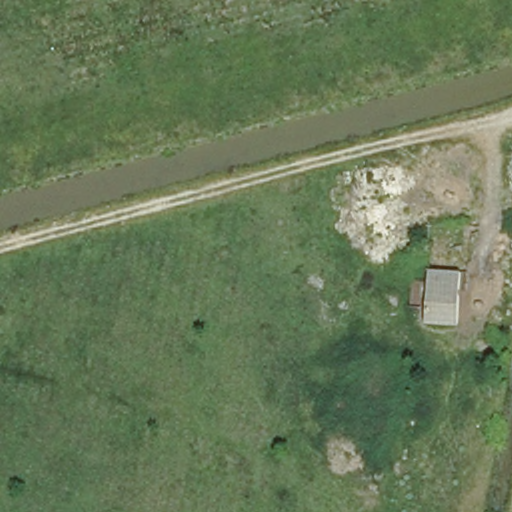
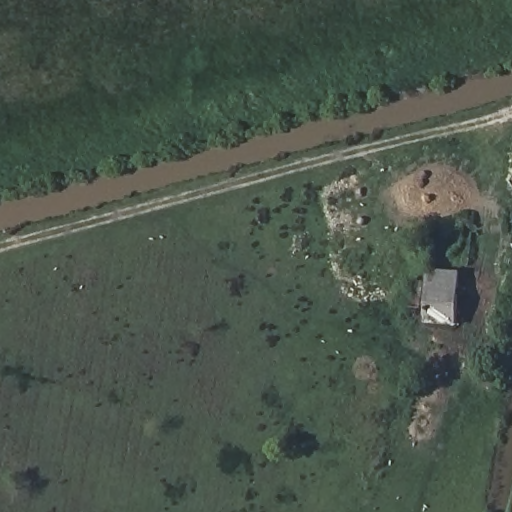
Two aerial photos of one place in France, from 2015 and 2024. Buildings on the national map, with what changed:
unchanged [(457,275),(456,325),(424,326),(428,274),(457,275)]

